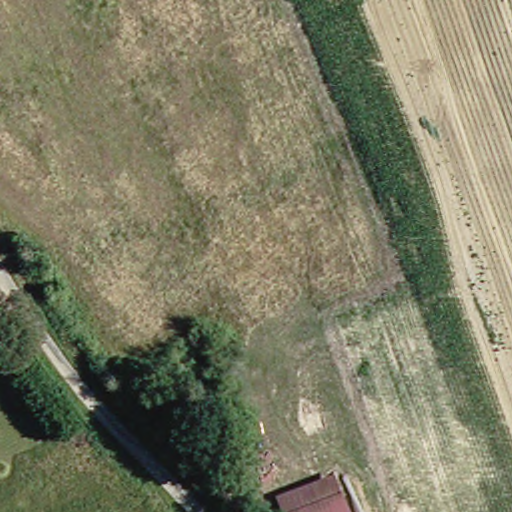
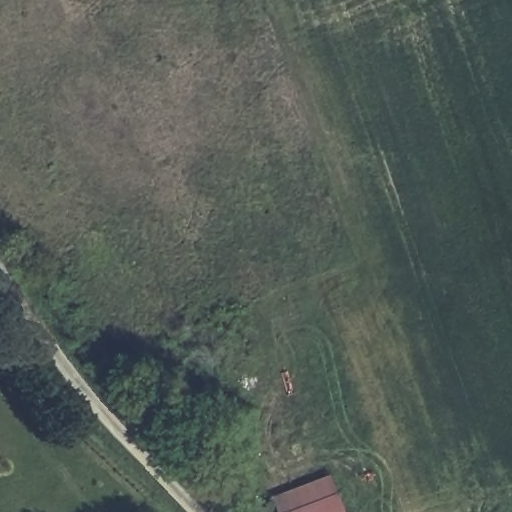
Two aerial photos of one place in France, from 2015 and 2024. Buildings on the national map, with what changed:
unchanged [(327,489),(336,512),(275,512),(274,508),(327,489)]

